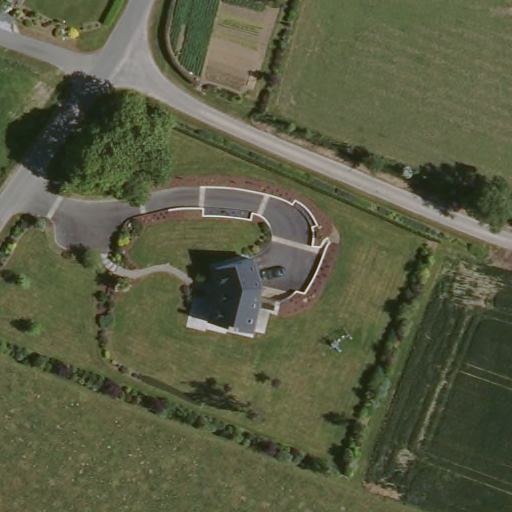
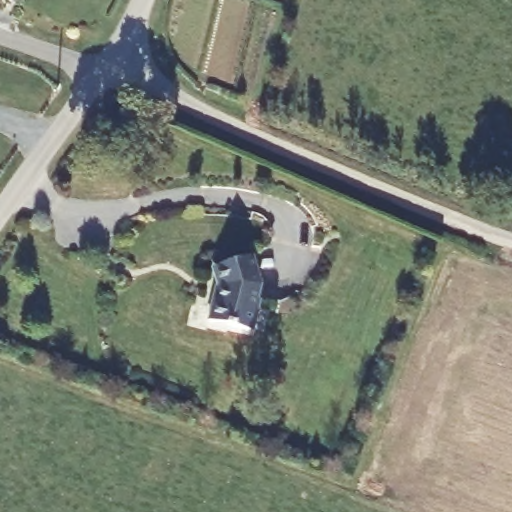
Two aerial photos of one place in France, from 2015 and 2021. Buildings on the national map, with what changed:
unchanged [(0,7),(0,0),(11,0),(6,10),(0,7)]
unchanged [(264,255),(269,290),(255,337),(205,322),(216,284),(212,263),(264,255)]

